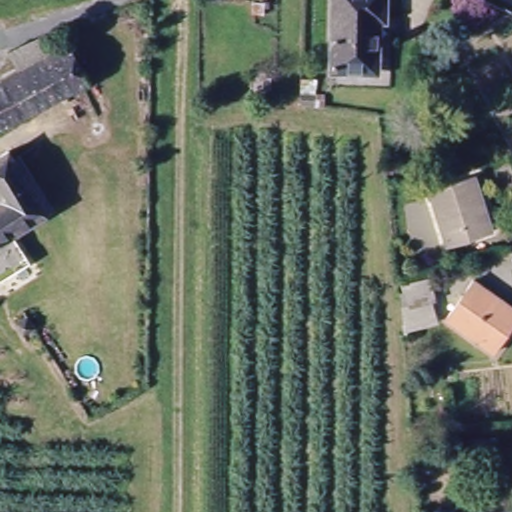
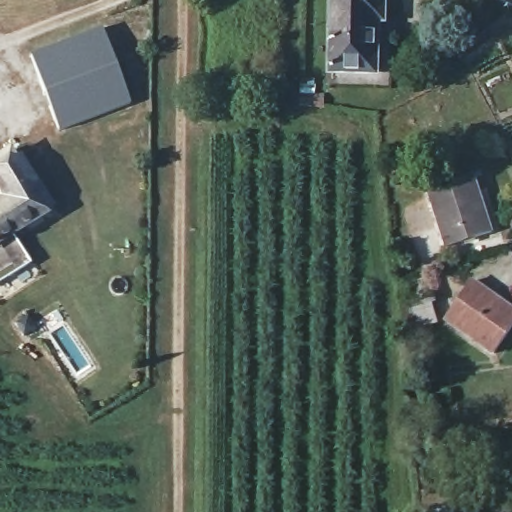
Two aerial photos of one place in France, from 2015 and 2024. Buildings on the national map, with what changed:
unchanged [(374,22),(374,72),(333,71),(333,0),(383,0),(383,21),(374,22)]
new [(130,105),(59,132),(29,56),(100,30),(130,105)]
demolished [(92,87),(0,132),(0,83),(72,45),(92,87)]
unchanged [(0,197),(0,160),(13,153),(18,161),(25,157),(61,211),(20,238),(34,265),(0,286),(0,205),(4,203),(0,197)]
unchanged [(480,177),(495,232),(448,246),(434,189),(480,177)]
unchanged [(428,278),(430,301),(405,302),(402,281),(428,278)]
unchanged [(472,283),(512,307),(512,324),(496,352),(450,323),(472,283)]
unchanged [(461,506),(461,512),(440,512),(440,505),(461,506)]

